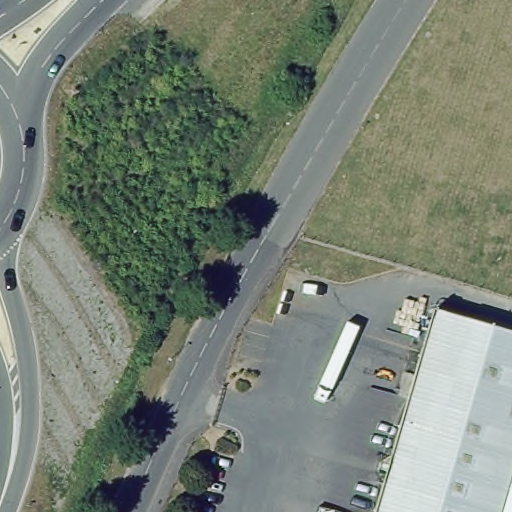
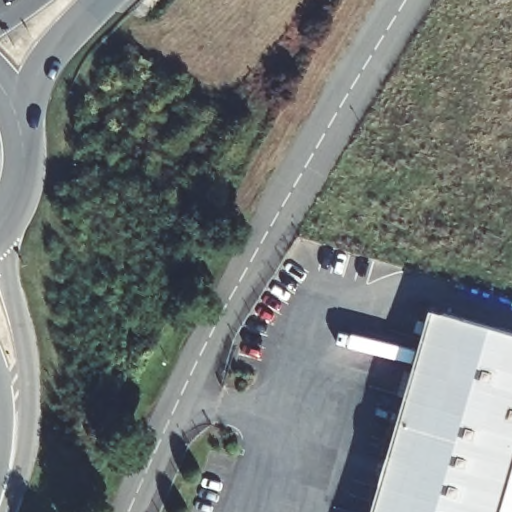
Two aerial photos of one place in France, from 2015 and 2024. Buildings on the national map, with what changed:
unchanged [(377,477),(382,456),(394,450),(435,310),(512,333),(512,491),(506,512),(376,512),(384,484),(377,477)]
unchanged [(512,512),(506,512),(512,491),(512,512)]

